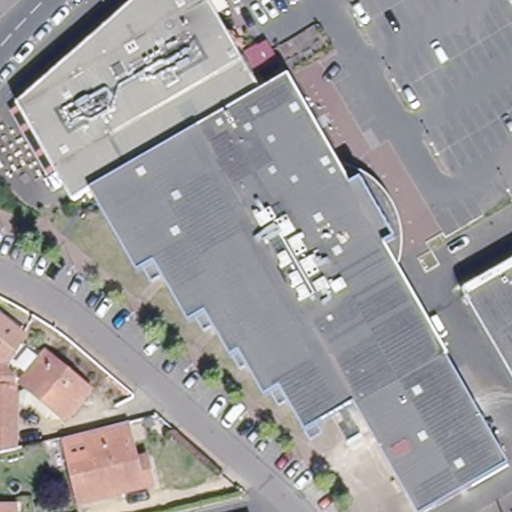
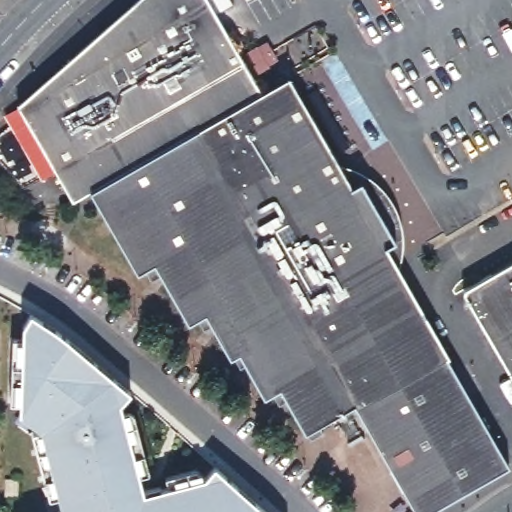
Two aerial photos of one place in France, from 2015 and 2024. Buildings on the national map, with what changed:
unchanged [(451,352),(448,355),(512,462),(425,512),(421,512),(356,402),(321,423),(326,431),(313,439),(289,400),(281,405),(273,392),(267,395),(248,364),(242,368),(235,355),(232,356),(214,325),(206,330),(199,318),(190,322),(162,275),(152,281),(145,268),(139,272),(91,190),(74,200),(19,105),(135,0),(207,0),(262,91),(290,75),(347,175),(358,169),(366,183),(393,231),(402,245),(392,251),(451,352)]
unchanged [(460,284),(512,254),(512,375),(460,284)]
demolished [(8,357),(0,357),(0,309),(27,326),(8,357)]
new [(120,401),(144,494),(209,476),(216,466),(265,512),(63,512),(42,428),(21,413),(25,325),(32,313),(131,390),(120,401)]
demolished [(86,382),(64,410),(25,378),(45,350),(86,382)]
demolished [(20,382),(0,381),(0,358),(9,358),(12,361),(22,371),(20,382)]
demolished [(143,466),(154,464),(158,482),(84,498),(75,463),(95,459),(91,441),(87,428),(132,418),(143,466)]
demolished [(17,512),(0,512),(0,496),(15,495),(17,512)]

